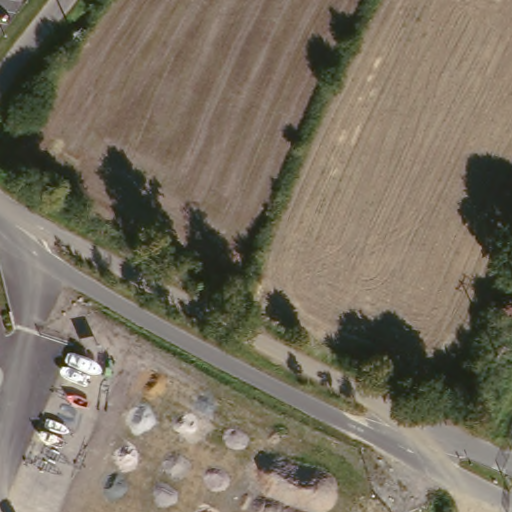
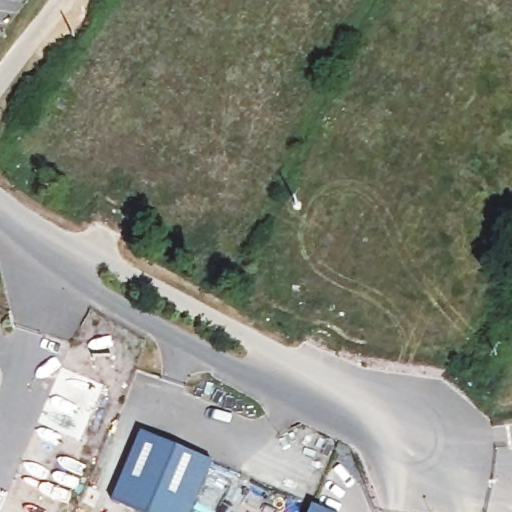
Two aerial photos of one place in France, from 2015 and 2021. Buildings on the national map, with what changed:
new [(192,512),(132,512),(111,503),(140,432),(212,464),(192,512)]
new [(327,512),(309,512),(311,507),(327,512)]

